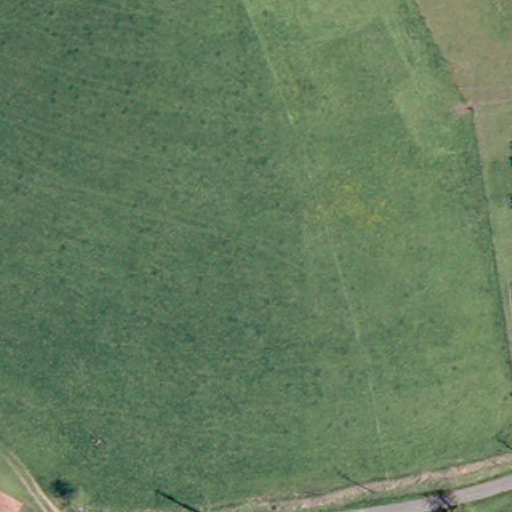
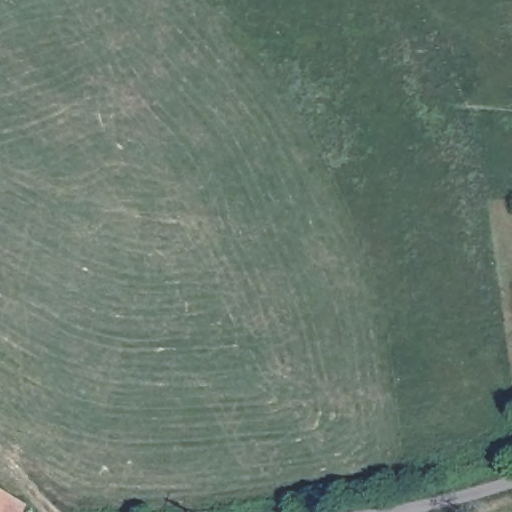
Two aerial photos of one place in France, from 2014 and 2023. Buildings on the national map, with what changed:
unchanged [(16,512),(0,512),(0,491),(21,502),(16,512)]

